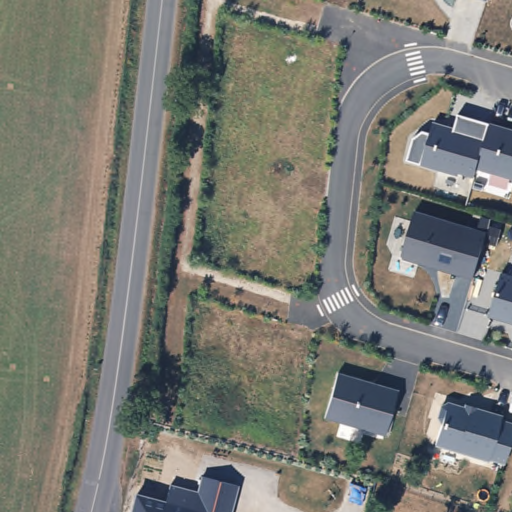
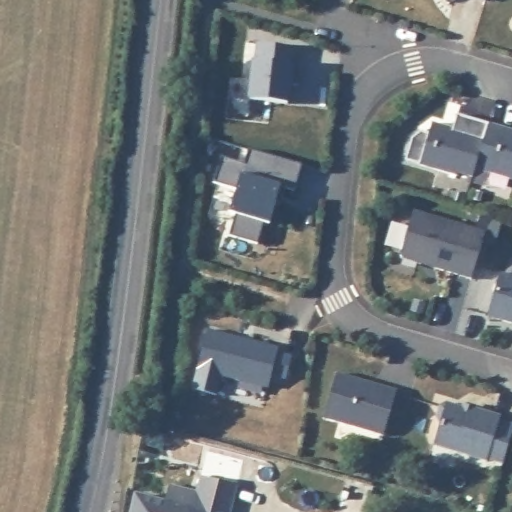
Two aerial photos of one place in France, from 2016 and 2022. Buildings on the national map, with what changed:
new [(255,60),(257,60),(258,44),(294,47),(292,65),(302,65),(300,85),(290,85),(288,104),(250,100),(255,60)]
unchanged [(475,165),(472,175),(457,170),(456,173),(405,158),(411,136),(421,127),(429,130),(432,119),(452,125),(456,110),(488,120),(475,165)]
unchanged [(475,165),(488,120),(512,127),(512,177),(475,165)]
new [(221,156),(245,163),(249,149),(302,165),(295,190),(281,186),(270,224),(265,222),(258,244),(230,235),(236,214),(230,212),(237,190),(214,182),(221,156)]
unchanged [(475,263),(471,275),(437,265),(438,262),(421,257),(417,260),(402,255),(400,251),(413,207),(485,229),(475,263)]
unchanged [(487,312),(500,268),(512,272),(512,319),(487,312)]
new [(207,330),(279,347),(278,352),(292,356),(286,379),(272,375),(269,387),(222,375),(217,395),(192,389),(207,330)]
unchanged [(383,432),(323,415),(336,370),(363,378),(362,381),(379,386),(380,383),(396,387),(383,432)]
unchanged [(471,407),(471,405),(499,413),(498,417),(512,421),(512,427),(510,435),(502,460),(487,455),(486,457),(433,441),(439,420),(435,415),(439,403),(445,400),(471,407)]
unchanged [(165,500),(170,483),(197,491),(201,476),(237,485),(230,512),(130,512),(136,491),(165,500)]

